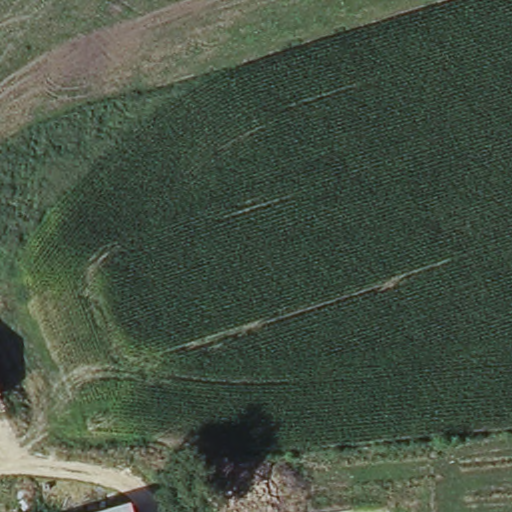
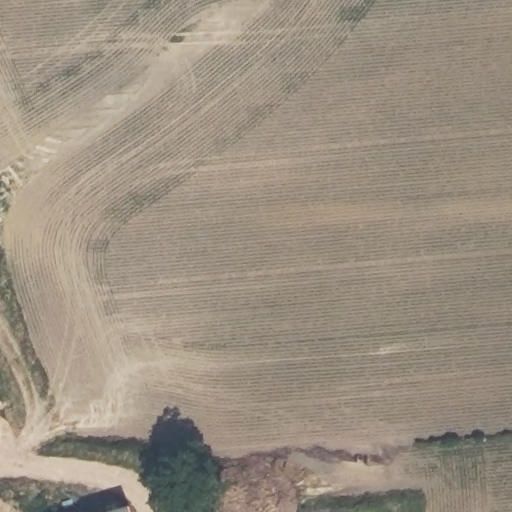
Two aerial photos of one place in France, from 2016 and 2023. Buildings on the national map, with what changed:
unchanged [(128,503),(130,512),(96,512),(128,503)]

